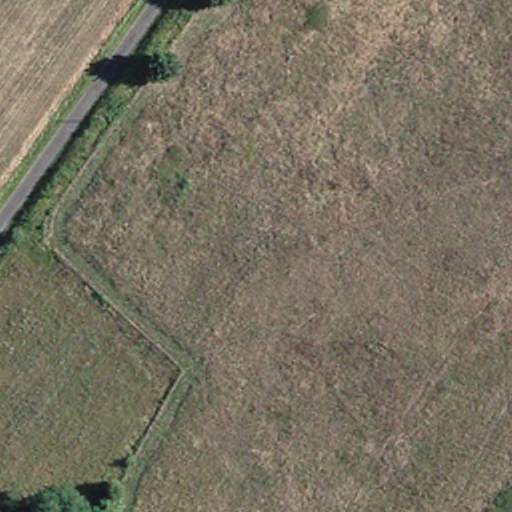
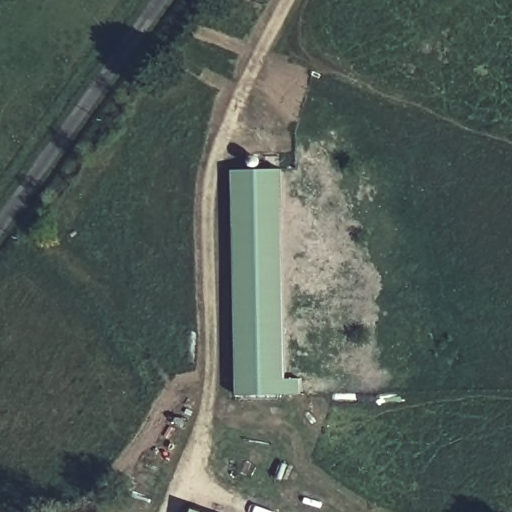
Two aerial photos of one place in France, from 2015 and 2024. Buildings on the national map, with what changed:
new [(280,175),(285,400),(237,401),(232,175),(280,175)]

